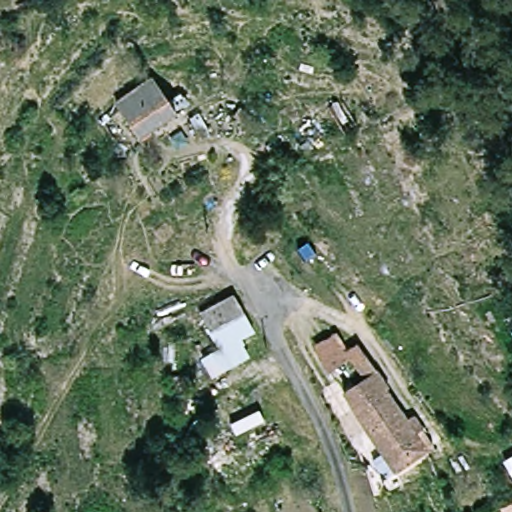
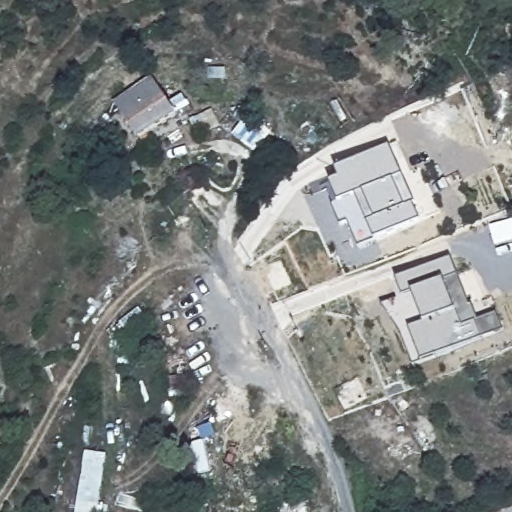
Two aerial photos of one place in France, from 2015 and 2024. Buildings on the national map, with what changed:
unchanged [(157,76),(183,115),(145,140),(119,102),(157,76)]
new [(403,175),(395,178),(408,205),(415,202),(422,220),(377,240),(375,236),(359,247),(348,222),(342,225),(332,205),(338,198),(331,181),(340,177),(336,168),(390,144),(403,175)]
new [(459,274),(445,280),(458,308),(456,310),(464,326),(477,321),(484,338),(424,363),(423,360),(413,365),(400,331),(382,302),(402,293),(396,278),(452,256),(459,274)]
unchanged [(378,455),(387,448),(355,400),(347,386),(358,379),(345,360),(345,359),(334,366),(319,340),(341,326),(353,344),(360,338),(372,352),(381,363),(394,380),(392,382),(393,382),(412,411),(413,411),(420,407),(429,421),(423,425),(433,442),(433,444),(412,459),(402,465),(400,466),(399,466),(396,462),(386,468),(378,455)]
new [(99,512),(77,512),(85,451),(106,455),(99,512)]
unchanged [(500,499),(512,494),(512,512),(504,512),(500,499)]

